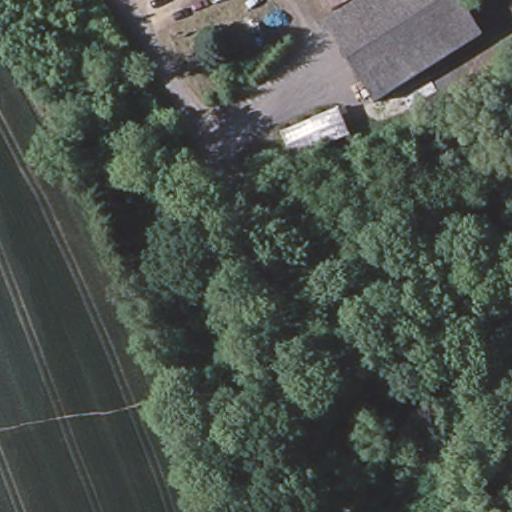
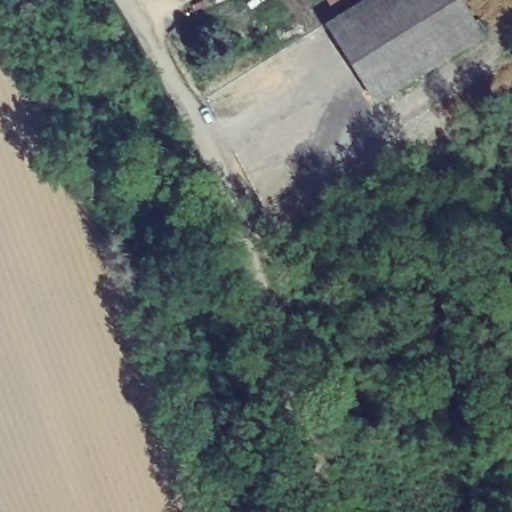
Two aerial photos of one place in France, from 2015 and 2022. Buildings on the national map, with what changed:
unchanged [(484,38),(475,44),(377,106),(329,27),(369,0),(461,0),(470,16),(484,38)]
unchanged [(350,137),(293,162),(279,132),(339,107),(350,137)]

